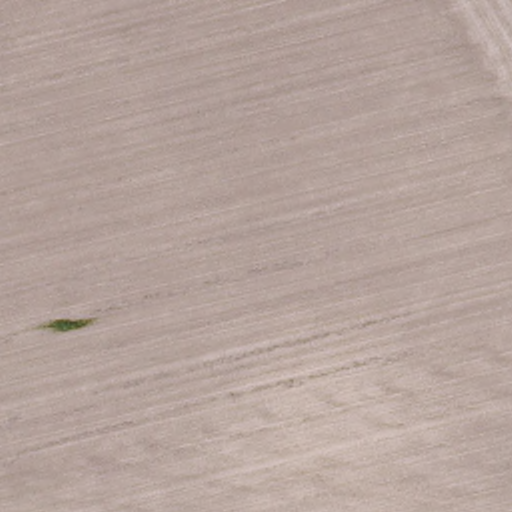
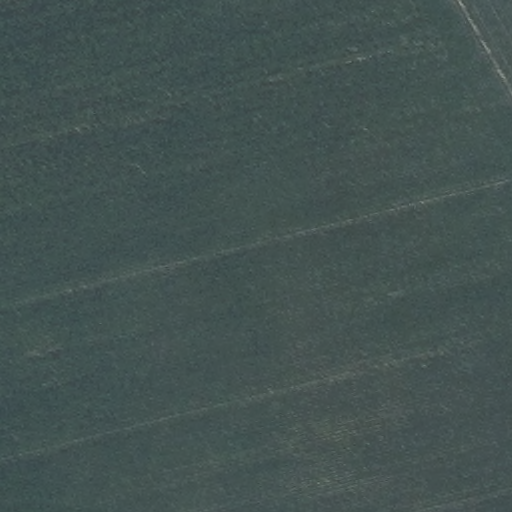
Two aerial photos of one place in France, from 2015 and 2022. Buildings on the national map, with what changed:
[]

